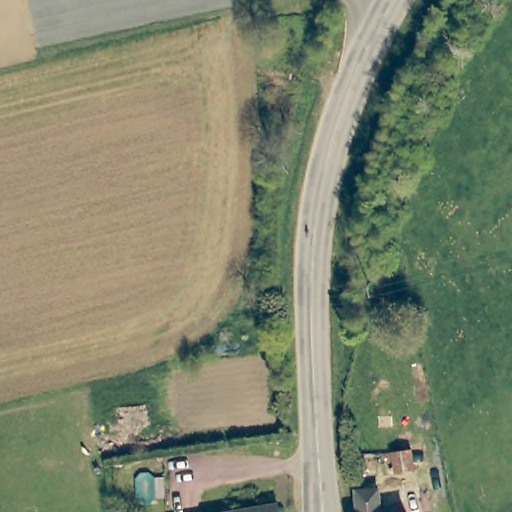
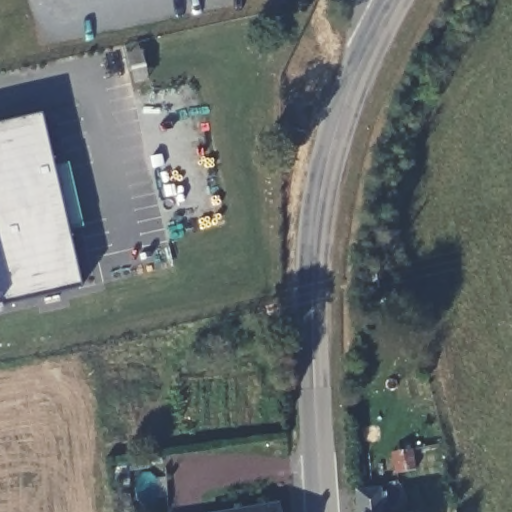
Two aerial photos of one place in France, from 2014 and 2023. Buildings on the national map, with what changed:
new [(51,168),(67,163),(81,225),(65,230),(77,287),(0,306),(0,122),(40,114),(51,168)]
unchanged [(394,473),(391,452),(410,449),(413,471),(394,473)]
unchanged [(357,491),(380,489),(382,512),(359,512),(357,491)]
unchanged [(278,500),(280,512),(208,512),(278,500)]

